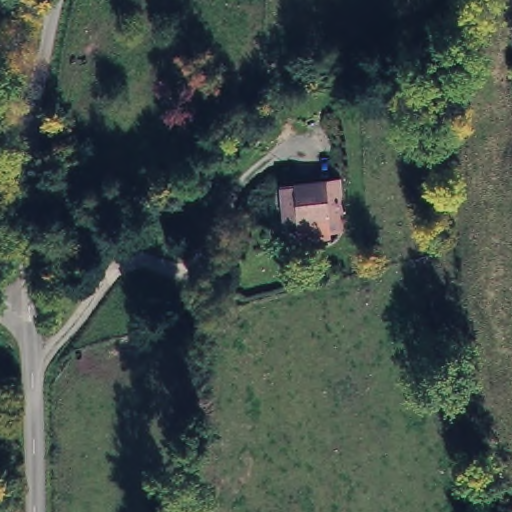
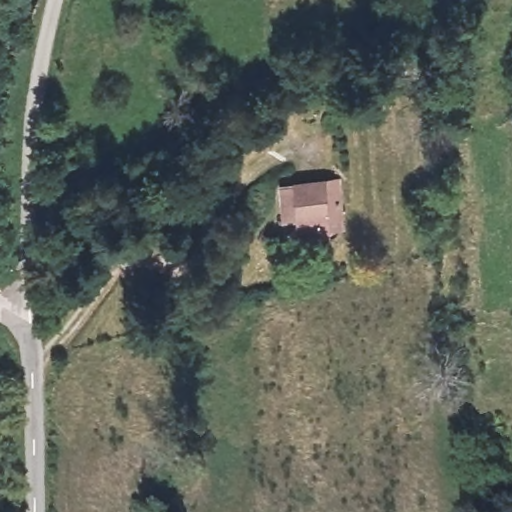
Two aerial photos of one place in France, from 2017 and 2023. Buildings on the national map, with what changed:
unchanged [(338,180),(340,232),(297,235),(297,220),(282,222),(280,187),(295,186),(295,183),(338,180)]

